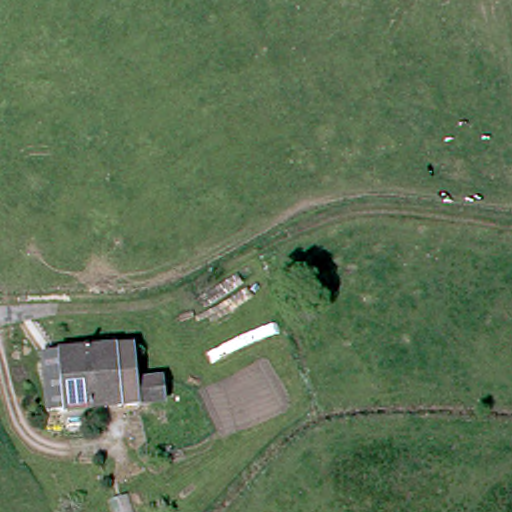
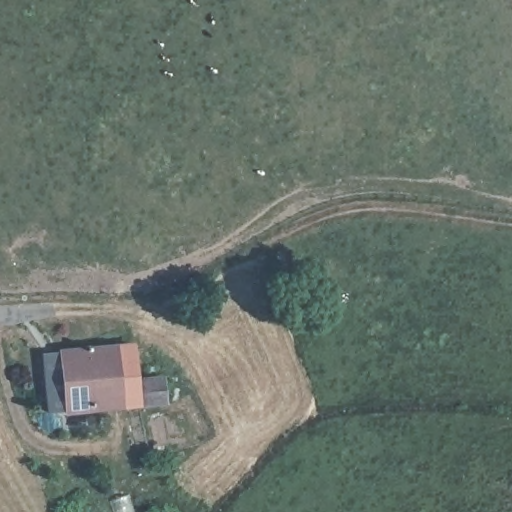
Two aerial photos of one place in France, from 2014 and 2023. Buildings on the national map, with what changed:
unchanged [(47,349),(57,348),(121,342),(128,342),(132,377),(157,375),(159,397),(63,407),(53,407),(47,349)]

